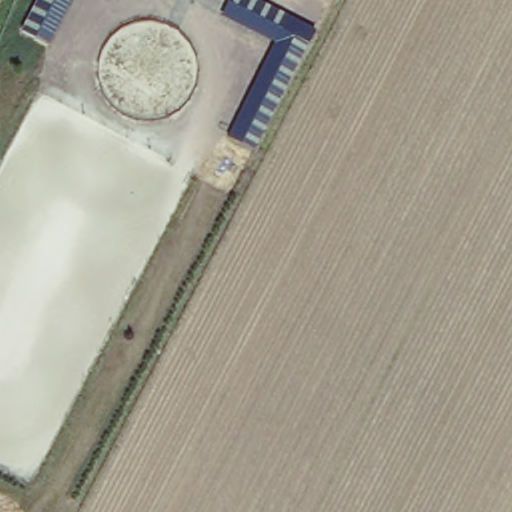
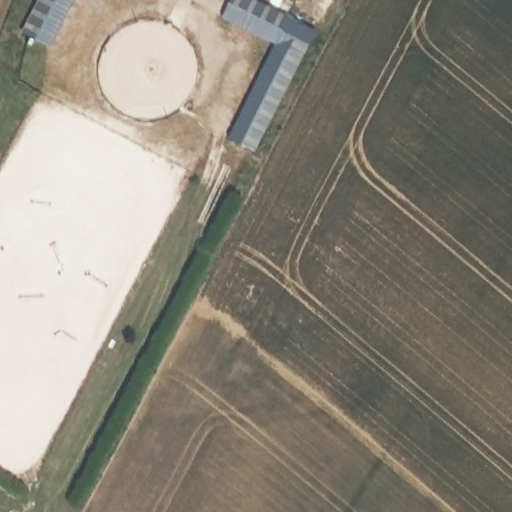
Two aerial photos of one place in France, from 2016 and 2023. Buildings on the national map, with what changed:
unchanged [(21,33),(38,0),(74,0),(47,48),(21,33)]
unchanged [(227,138),(272,45),(224,19),(234,0),(254,0),(315,31),(251,150),(227,138)]

